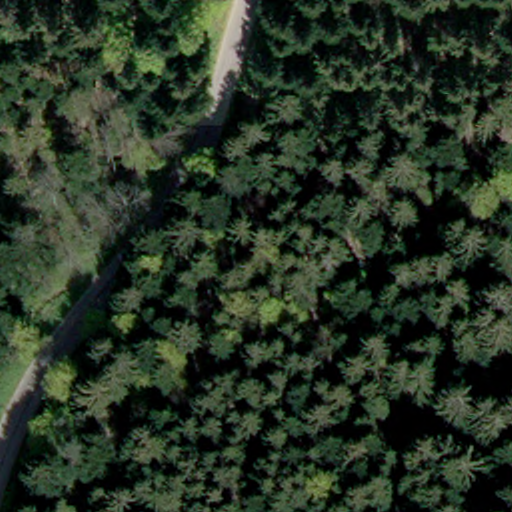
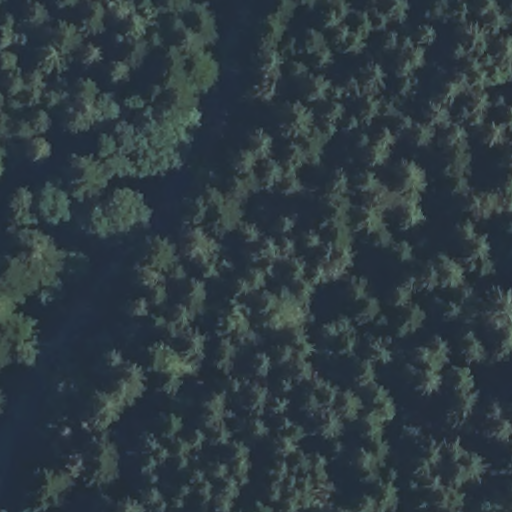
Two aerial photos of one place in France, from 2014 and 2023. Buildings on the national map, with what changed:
[]

